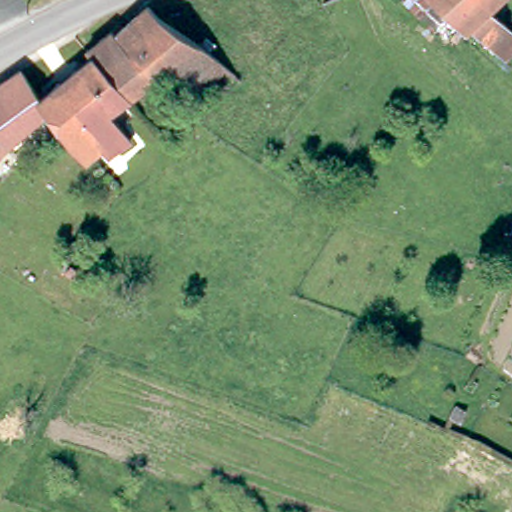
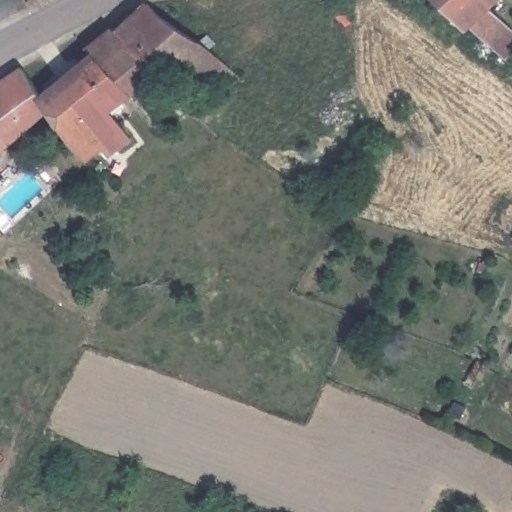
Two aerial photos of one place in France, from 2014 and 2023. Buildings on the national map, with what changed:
unchanged [(157,10),(230,66),(207,88),(199,79),(191,85),(165,55),(151,66),(115,26),(145,0),(150,0),(157,10)]
unchanged [(433,8),(425,0),(440,0),(433,8)]
unchanged [(505,47),(491,35),(483,27),(471,16),(461,23),(460,22),(441,0),(495,0),(511,16),(512,17),(512,40),(505,47)]
unchanged [(85,43),(111,23),(115,26),(151,66),(126,87),(90,49),(85,43)]
unchanged [(90,49),(126,87),(108,103),(130,132),(115,144),(126,159),(110,178),(102,171),(47,102),(45,107),(44,105),(38,89),(90,49)]
unchanged [(45,107),(2,139),(0,136),(0,75),(19,62),(38,89),(44,105),(45,107)]
unchanged [(0,141),(0,136),(2,139),(0,141)]

